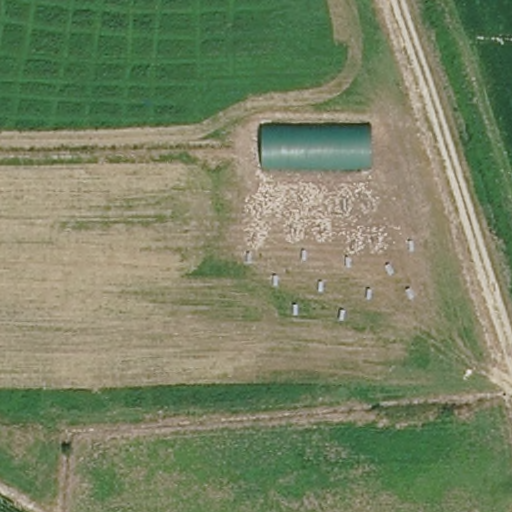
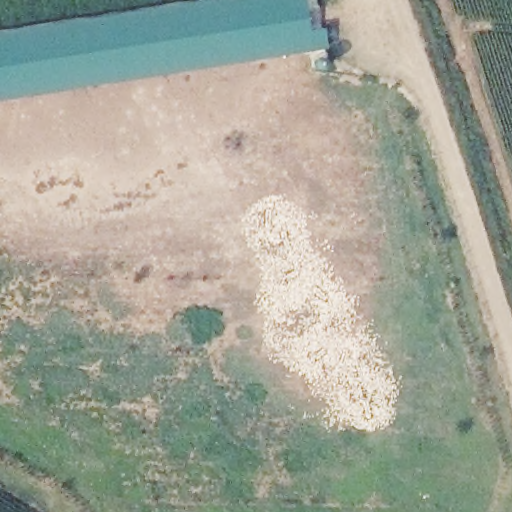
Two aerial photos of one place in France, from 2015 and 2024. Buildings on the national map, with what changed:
new [(303,0),(307,31),(322,30),(326,49),(0,102),(0,35),(215,0),(303,0)]

